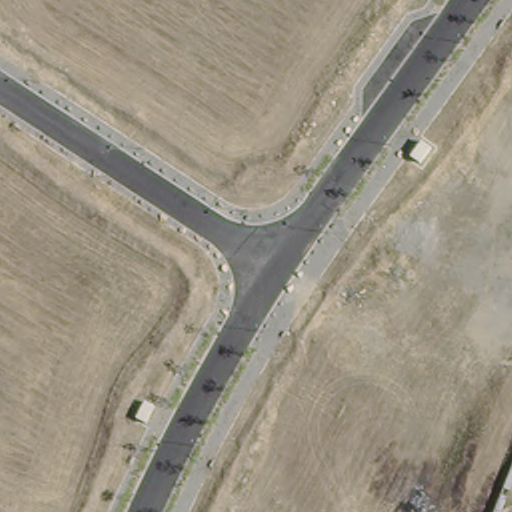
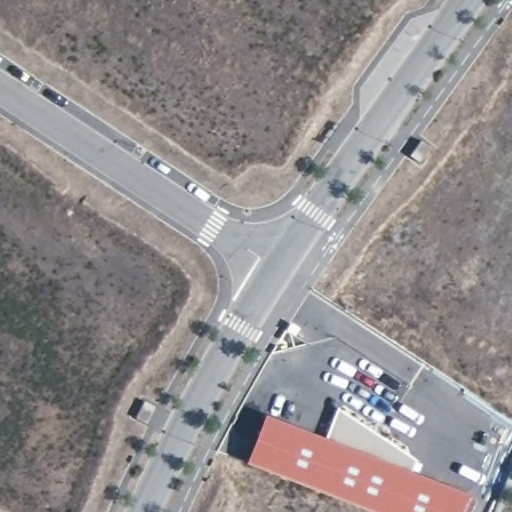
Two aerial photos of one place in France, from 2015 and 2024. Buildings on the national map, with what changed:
new [(265,414),(324,436),(337,406),(423,463),(419,471),(470,492),(462,512),(374,512),(245,463),(265,414)]

